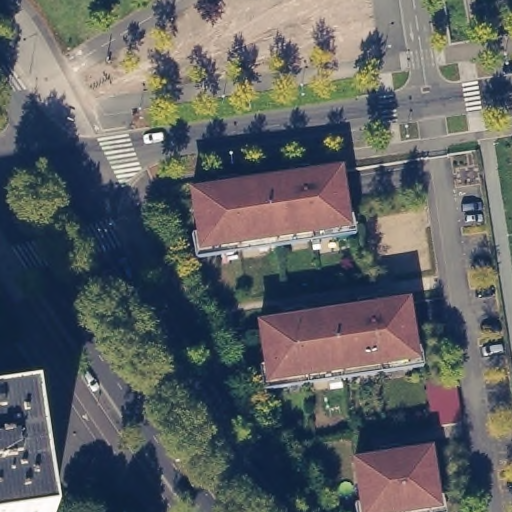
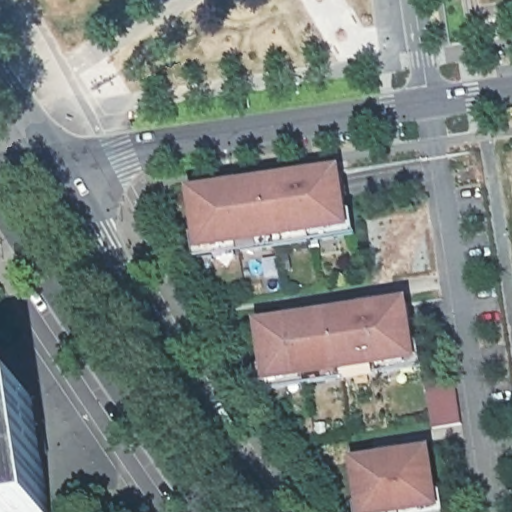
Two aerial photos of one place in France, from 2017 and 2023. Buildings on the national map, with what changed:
unchanged [(348,234),(200,256),(191,199),(218,195),(217,185),(236,181),(237,191),(291,184),(290,174),(309,170),(310,180),(340,176),(348,234)]
unchanged [(286,326),(285,317),(303,314),(305,323),(358,316),(357,306),(376,303),(378,313),(407,308),(415,366),(267,388),(259,330),(286,326)]
unchanged [(455,378),(461,425),(432,428),(426,383),(455,378)]
unchanged [(33,394),(51,512),(0,512),(0,399),(33,394)]
unchanged [(438,512),(361,512),(354,468),(381,464),(380,454),(399,451),(400,461),(430,456),(438,512)]

